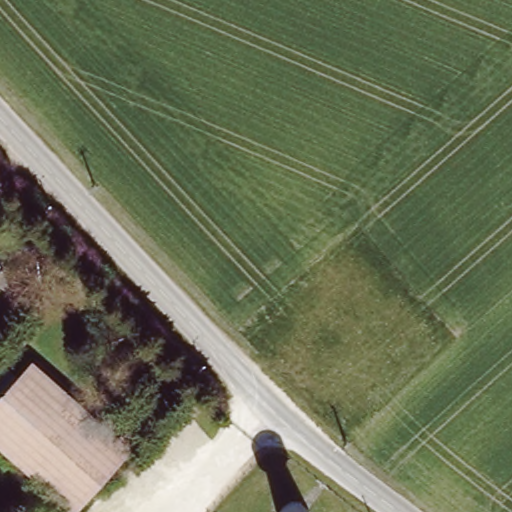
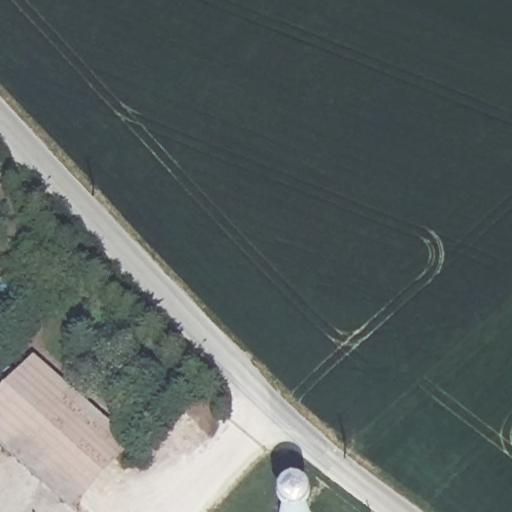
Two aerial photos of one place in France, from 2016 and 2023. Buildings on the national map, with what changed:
unchanged [(0,456),(0,411),(37,372),(130,457),(81,512),(62,512),(0,456)]

